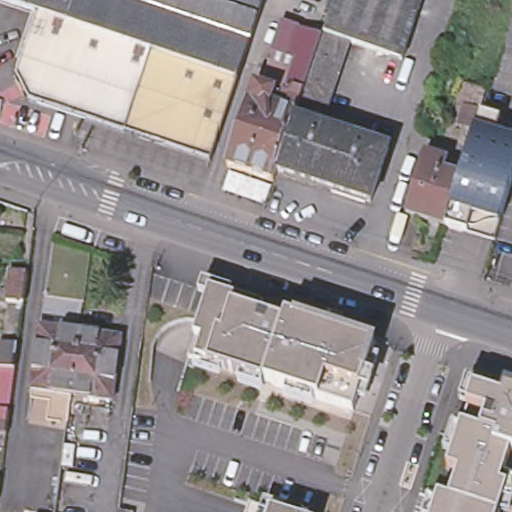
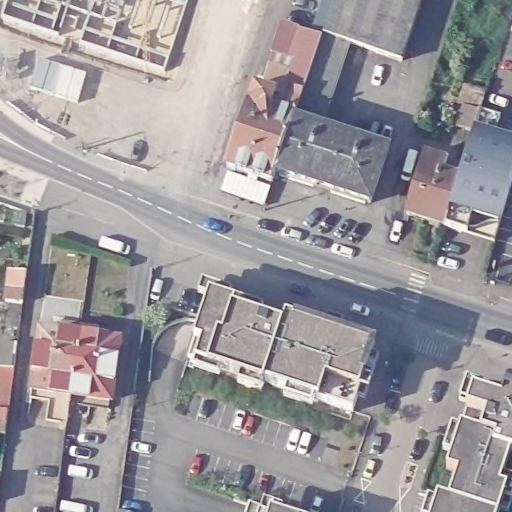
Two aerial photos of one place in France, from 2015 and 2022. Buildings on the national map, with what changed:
demolished [(150,54),(35,15),(0,3),(0,0),(265,0),(237,83),(150,54)]
new [(2,16),(8,0),(188,0),(164,70),(2,16)]
unchanged [(226,169),(254,88),(258,90),(271,55),(281,25),(300,32),(321,40),(322,36),(323,37),(336,0),(421,0),(400,62),(346,45),(338,68),(322,116),(321,120),(297,111),(293,121),(275,176),(272,185),(226,169)]
demolished [(30,105),(15,77),(35,15),(150,54),(125,135),(30,105)]
demolished [(125,135),(150,54),(237,83),(210,164),(125,135)]
unchanged [(444,230),(445,229),(460,180),(474,134),(462,130),(470,109),(480,112),(480,115),(512,125),(512,180),(494,241),(492,247),(460,235),(444,230)]
unchanged [(387,152),(369,207),(275,176),(293,121),(387,152)]
unchanged [(403,215),(423,156),(443,163),(440,174),(460,180),(445,229),(403,215)]
unchanged [(8,289),(11,271),(26,273),(24,291),(22,304),(6,301),(8,289)]
unchanged [(165,279),(200,289),(202,282),(232,294),(230,300),(263,311),(259,317),(281,325),(283,314),(375,345),(362,390),(354,410),(320,399),(209,368),(208,361),(197,359),(202,348),(194,343),(205,309),(161,293),(165,279)]
unchanged [(74,396),(30,390),(40,329),(61,332),(62,324),(83,327),(101,330),(100,337),(121,340),(112,402),(74,396)]
unchanged [(17,345),(15,359),(14,370),(0,368),(0,354),(1,343),(17,345)]
unchanged [(508,451),(504,475),(512,480),(512,501),(508,512),(501,512),(499,511),(499,512),(434,512),(438,497),(448,501),(455,473),(445,470),(460,425),(480,429),(484,416),(466,407),(472,390),(502,398),(506,392),(512,394),(512,452),(508,451)]
unchanged [(6,425),(5,436),(0,436),(0,411),(8,412),(6,425)]
unchanged [(248,505),(260,507),(263,502),(283,508),(281,512),(246,512),(248,505)]
unchanged [(118,511),(121,512),(118,512),(118,511)]

